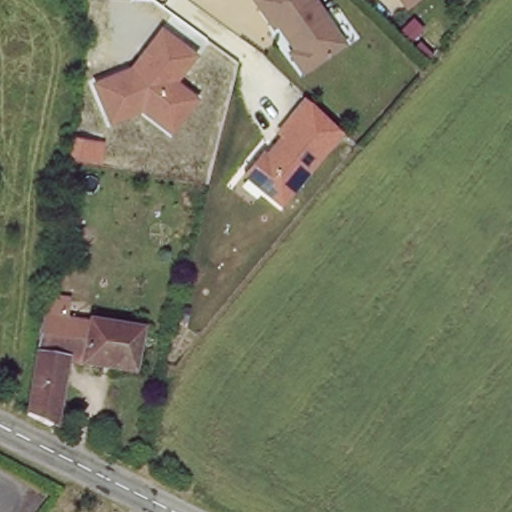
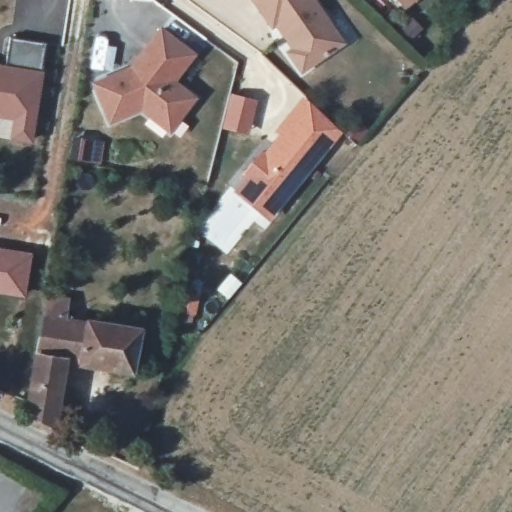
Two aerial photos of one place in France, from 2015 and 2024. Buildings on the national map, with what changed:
unchanged [(299,47),(295,43),(291,38),(278,25),(274,28),(271,25),(249,3),(252,0),(314,0),(332,18),(329,20),(344,35),(318,59),(311,67),(295,51),(299,47)]
unchanged [(399,0),(418,0),(407,9),(399,0)]
unchanged [(196,54),(175,81),(195,98),(170,132),(139,109),(110,120),(96,79),(132,69),(159,29),(196,54)]
new [(7,65),(11,39),(44,43),(41,71),(44,71),(33,142),(11,139),(14,119),(0,117),(0,64),(7,65)]
unchanged [(331,148),(282,204),(242,176),(261,146),(267,150),(292,118),(331,148)]
new [(31,251),(25,296),(0,292),(0,247),(31,251)]
unchanged [(40,418),(29,412),(46,311),(148,330),(139,374),(73,360),(61,428),(40,418)]

